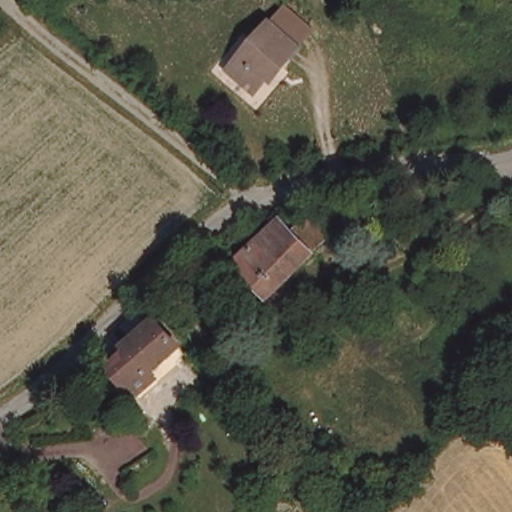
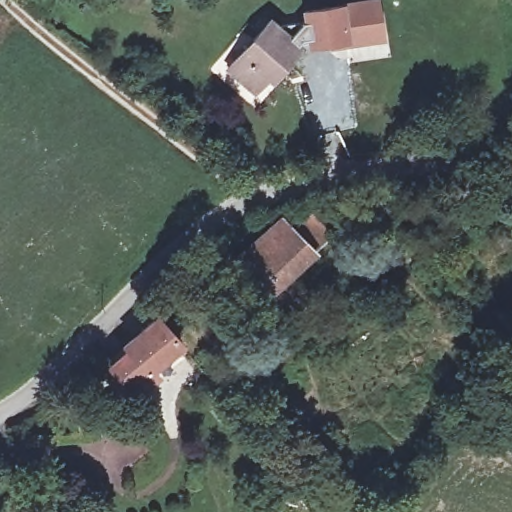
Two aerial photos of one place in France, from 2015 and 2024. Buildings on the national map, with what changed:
new [(302,35),(295,30),(302,21),(300,10),(345,2),(360,0),(379,0),(385,41),(329,50),(328,44),(307,47),(307,38),(299,38),(302,35)]
unchanged [(263,28),(276,13),(302,35),(288,50),(291,52),(274,71),(270,68),(245,96),(219,74),(260,26),(263,28)]
unchanged [(301,207),(302,207),(310,214),(334,238),(260,303),(227,270),(301,207)]
unchanged [(133,344),(131,342),(161,314),(177,337),(150,363),(155,369),(135,387),(113,362),(133,344)]

